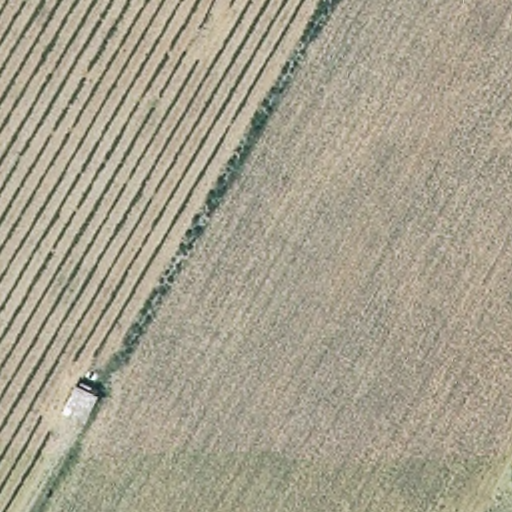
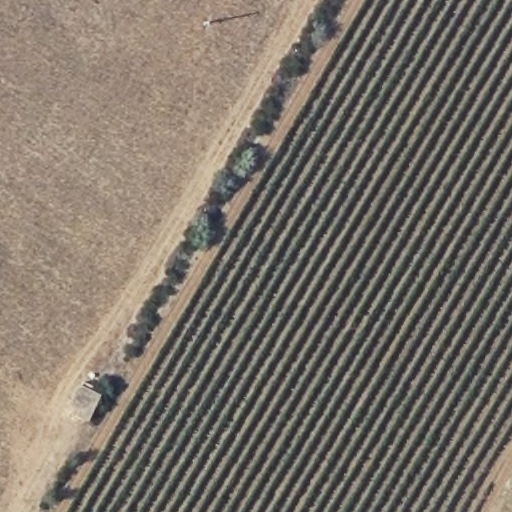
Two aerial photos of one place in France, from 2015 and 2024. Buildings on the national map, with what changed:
unchanged [(75,380),(95,387),(84,416),(64,411),(75,380)]

